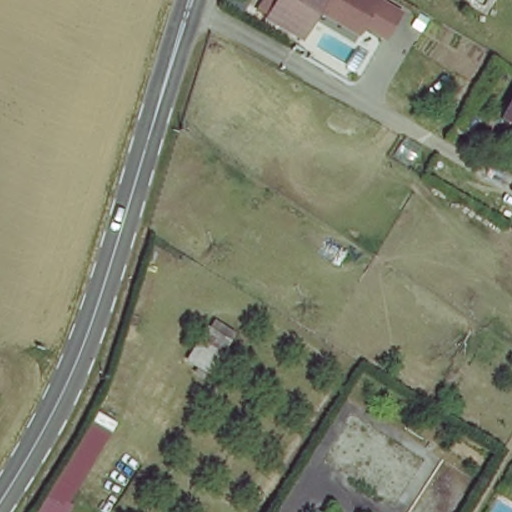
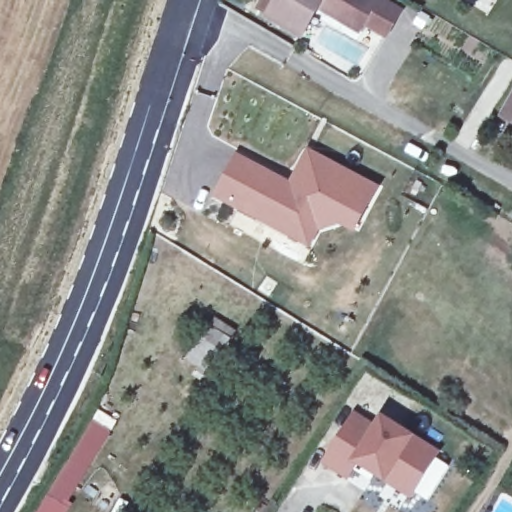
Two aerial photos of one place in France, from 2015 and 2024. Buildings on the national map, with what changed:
unchanged [(277,0),(322,0),(304,30),(271,10),(277,0)]
unchanged [(374,0),(366,12),(341,0),(374,0)]
unchanged [(512,96),(512,120),(502,114),(512,96)]
new [(239,158),(292,187),(311,154),(375,190),(360,215),(341,203),(322,209),(304,242),(219,197),(239,158)]
unchanged [(236,327),(202,373),(183,355),(215,312),(236,327)]
demolished [(393,503),(322,455),(355,407),(426,454),(393,503)]
new [(355,411),(379,425),(383,420),(410,436),(413,432),(440,451),(437,457),(452,465),(429,503),(415,493),(410,500),(383,482),(385,479),(378,475),(372,484),(353,471),(347,481),(323,465),(355,411)]
unchanged [(106,434),(62,505),(41,488),(82,419),(106,434)]

